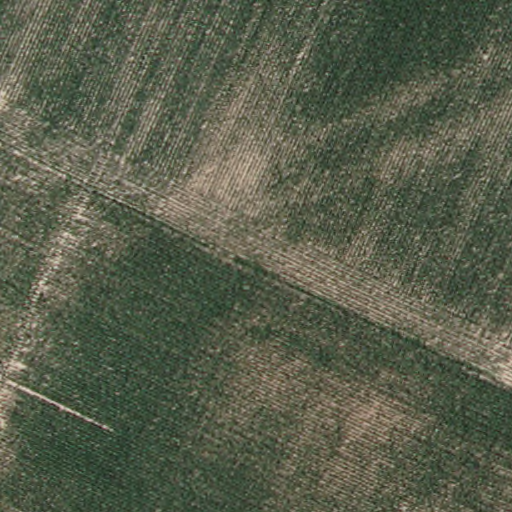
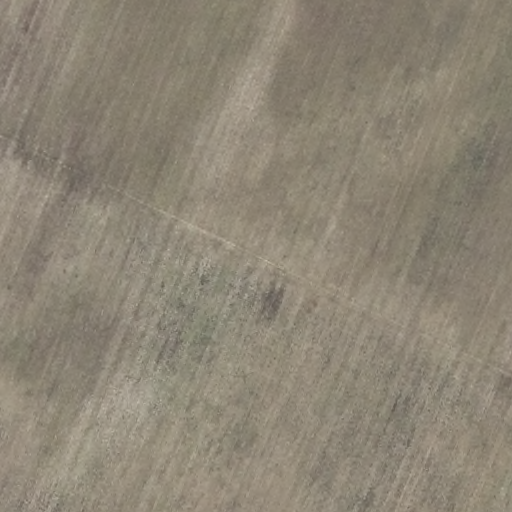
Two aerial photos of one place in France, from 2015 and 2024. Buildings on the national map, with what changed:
[]

